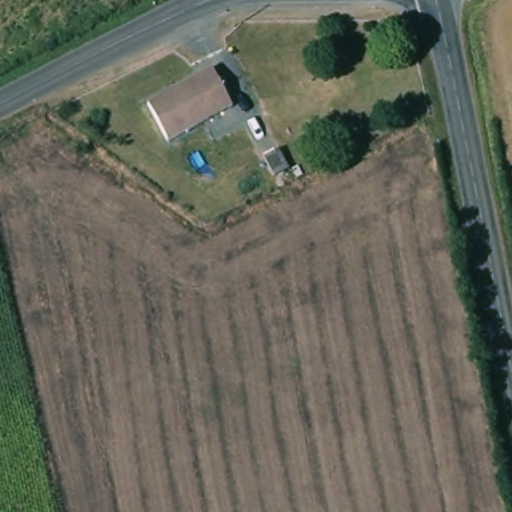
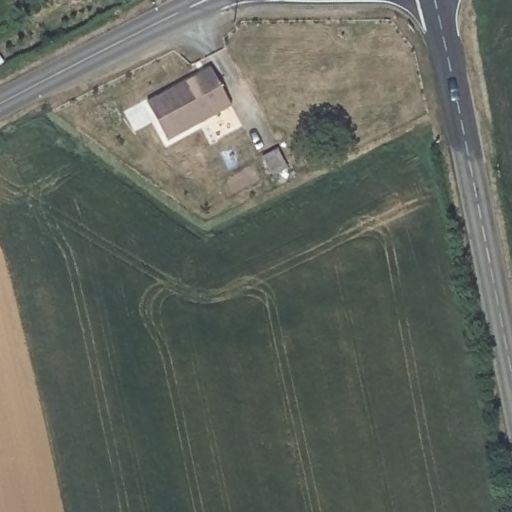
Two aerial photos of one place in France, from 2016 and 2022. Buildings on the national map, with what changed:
unchanged [(233,109),(166,144),(146,106),(212,72),(233,109)]

